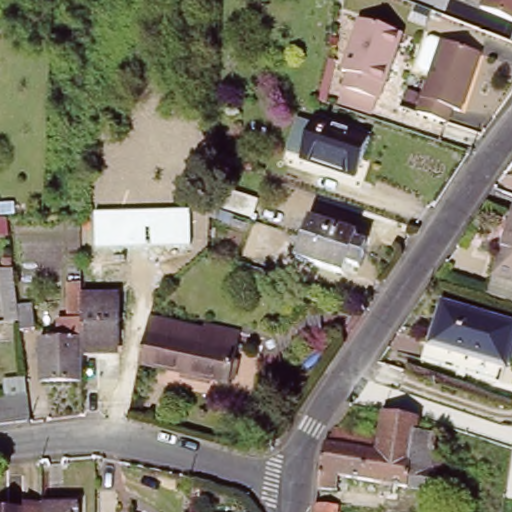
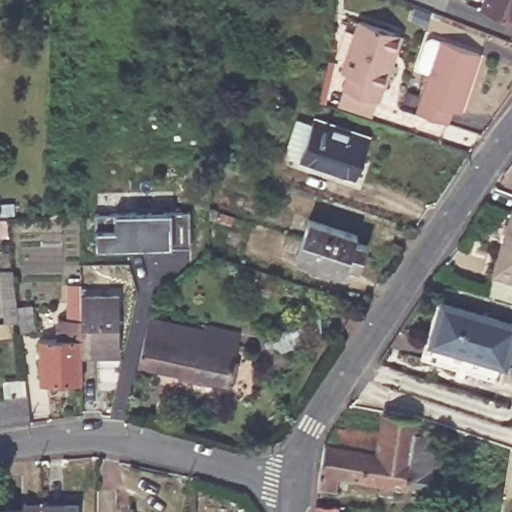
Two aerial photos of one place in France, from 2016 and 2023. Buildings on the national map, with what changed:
unchanged [(485,0),(512,0),(512,20),(482,8),(485,0)]
unchanged [(377,88),(372,104),(338,92),(344,77),(338,75),(356,25),(391,36),(398,39),(390,61),(380,89),(377,88)]
unchanged [(440,40),(478,53),(458,109),(450,107),(445,121),(415,111),(440,40)]
unchanged [(323,170),(301,162),(313,124),(370,141),(360,175),(357,180),(323,170)]
unchanged [(9,212),(10,228),(0,229),(0,213),(9,212)]
unchanged [(96,249),(95,214),(190,212),(191,247),(96,249)]
unchanged [(315,218),(361,234),(360,240),(371,244),(361,273),(350,269),(346,279),(300,263),(315,218)]
unchanged [(512,251),(504,248),(512,222),(512,251)]
unchanged [(512,281),(496,276),(504,248),(512,251),(512,281)]
unchanged [(33,330),(20,331),(18,318),(6,319),(1,264),(13,264),(17,307),(31,306),(33,330)]
unchanged [(120,350),(114,350),(113,358),(83,357),(83,343),(82,324),(70,325),(69,288),(82,287),(82,298),(119,298),(120,350)]
unchanged [(512,346),(505,369),(430,346),(443,308),(512,330),(512,346)]
unchanged [(151,322),(185,331),(186,327),(241,338),(230,388),(140,369),(151,322)]
unchanged [(83,386),(41,387),(41,345),(83,343),(83,357),(83,386)]
unchanged [(32,422),(0,426),(0,400),(30,396),(32,422)]
unchanged [(378,437),(383,415),(418,421),(417,434),(437,437),(434,461),(445,463),(439,497),(340,481),(337,495),(317,492),(324,446),(334,428),(378,437)]
unchanged [(15,502),(34,501),(35,511),(64,510),(64,512),(0,512),(0,509),(16,508),(15,502)]
unchanged [(341,510),(341,512),(320,512),(320,507),(341,510)]

